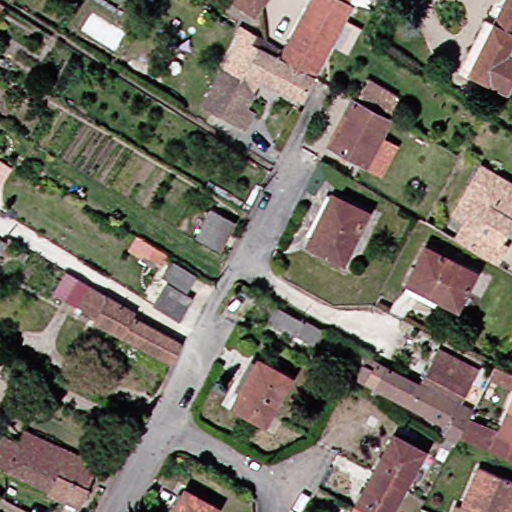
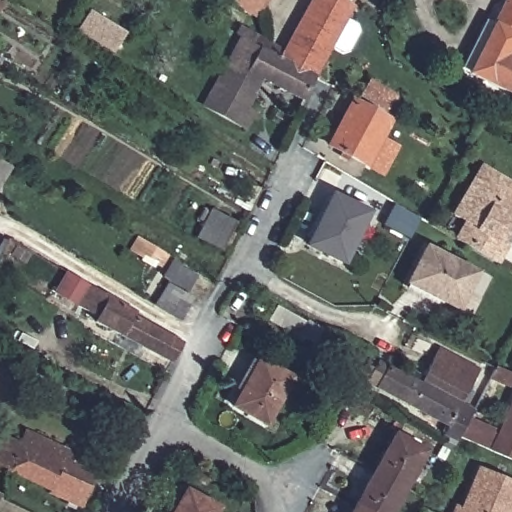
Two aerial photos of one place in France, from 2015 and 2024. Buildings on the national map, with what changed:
unchanged [(234,4),(237,0),(274,0),(266,13),(261,21),(234,4)]
unchanged [(349,3),(355,6),(349,16),(333,47),(318,75),(317,78),(285,56),(310,8),(315,0),(350,0),(349,3)]
unchanged [(491,22),(499,25),(501,22),(510,3),(511,0),(512,0),(512,91),(476,73),(467,69),(491,22)]
unchanged [(2,12),(0,11),(0,1),(6,5),(2,12)]
new [(94,12),(124,31),(114,49),(83,30),(94,12)]
unchanged [(246,81),(244,81),(239,91),(254,99),(249,109),(257,113),(248,130),(207,108),(227,71),(242,42),(237,39),(244,28),(259,38),(254,48),(260,51),(265,42),(285,56),(317,78),(304,101),(264,79),(259,88),(246,81)]
unchanged [(376,162),(369,158),(368,160),(333,141),(356,98),(371,106),(387,114),(392,118),(379,142),(385,146),(376,162)]
unchanged [(457,211),(484,163),(512,180),(512,220),(502,236),(509,240),(499,258),(459,235),(469,218),(457,211)]
unchanged [(374,214),(350,263),(315,245),(341,196),(374,214)]
unchanged [(218,248),(196,236),(213,207),(234,220),(218,248)]
unchanged [(13,243),(5,256),(0,253),(0,241),(1,239),(5,242),(7,239),(13,243)]
unchanged [(482,273),(464,308),(416,284),(433,249),(482,273)]
unchanged [(184,289),(161,276),(169,263),(192,275),(184,289)]
unchanged [(175,363),(161,356),(99,324),(102,318),(58,294),(69,274),(101,292),(138,314),(135,318),(159,330),(185,344),(175,363)]
unchanged [(176,321),(149,305),(162,283),(189,298),(176,321)]
unchanged [(300,322),(292,336),(267,322),(274,308),(300,322)]
unchanged [(310,343),(295,335),(303,321),(318,329),(310,343)]
unchanged [(445,345),(485,366),(467,399),(427,377),(445,345)]
unchanged [(464,436),(464,437),(451,430),(455,423),(383,383),(389,371),(380,365),(384,358),(424,380),(427,377),(467,399),(480,406),(476,415),(503,428),(496,445),(482,439),(479,444),(464,436)]
unchanged [(292,379),(266,424),(235,407),(261,361),(292,379)]
unchanged [(485,384),(489,378),(494,380),(491,387),(485,384)]
unchanged [(507,429),(512,418),(512,432),(507,429)]
unchanged [(93,461),(102,466),(81,508),(51,494),(51,491),(10,471),(0,466),(0,454),(9,437),(24,445),(31,432),(62,447),(93,461)]
unchanged [(403,435),(431,451),(410,488),(382,472),(403,435)]
unchanged [(110,446),(108,451),(104,448),(105,444),(110,446)]
unchanged [(457,512),(460,505),(466,507),(481,469),(512,481),(512,512),(457,512)]
unchanged [(410,488),(397,512),(370,512),(362,507),(382,472),(410,488)]
unchanged [(220,509),(218,512),(177,512),(189,491),(220,509)]
unchanged [(370,512),(360,512),(362,507),(370,512)]

